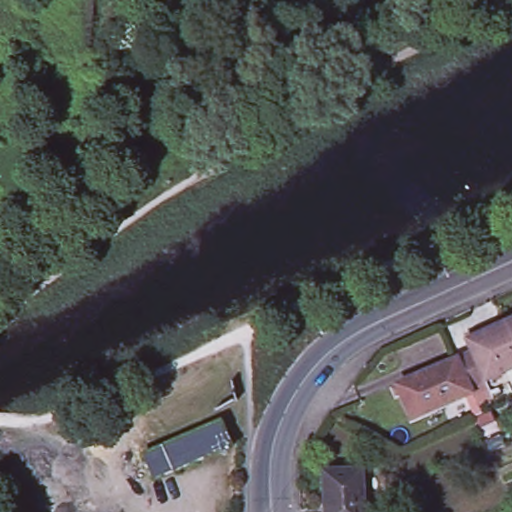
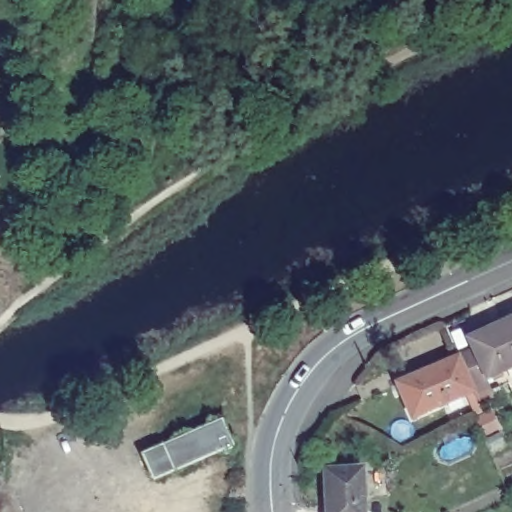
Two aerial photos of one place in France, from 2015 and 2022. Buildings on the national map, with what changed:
unchanged [(512,324),(512,374),(487,386),(469,345),(512,324)]
unchanged [(399,385),(410,380),(461,359),(475,392),(424,414),(414,418),(399,385)]
unchanged [(157,480),(146,458),(223,424),(232,446),(157,480)]
unchanged [(361,469),(365,512),(328,512),(325,473),(361,469)]

